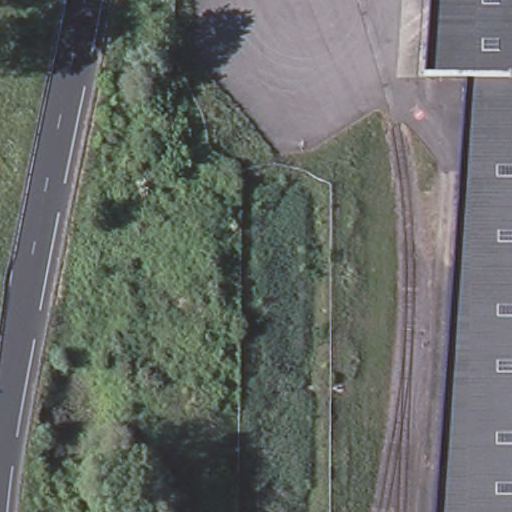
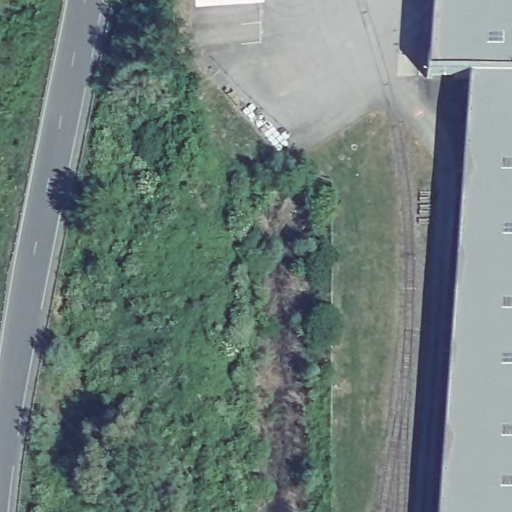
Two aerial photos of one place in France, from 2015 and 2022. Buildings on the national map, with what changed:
unchanged [(464,80),(426,80),(431,0),(512,0),(512,512),(437,512),(464,80)]

